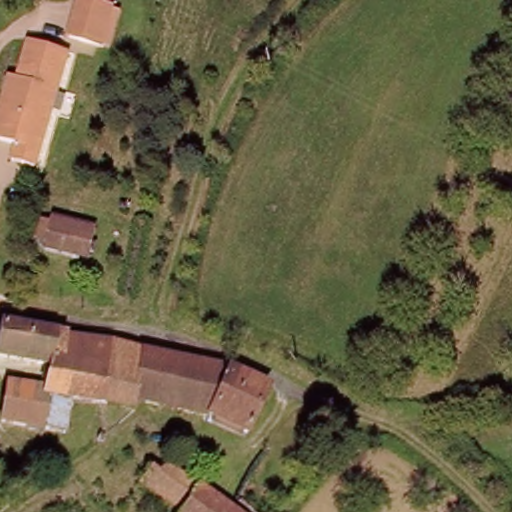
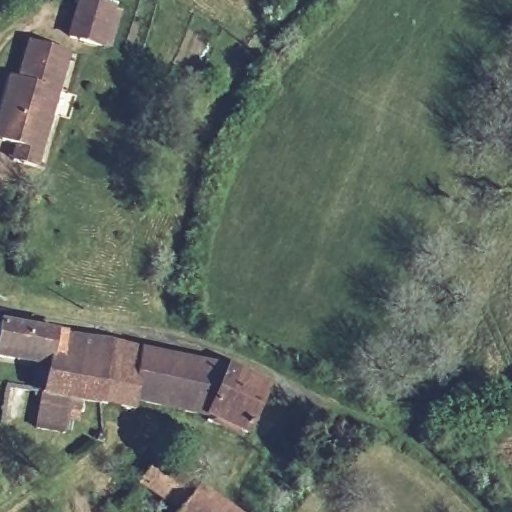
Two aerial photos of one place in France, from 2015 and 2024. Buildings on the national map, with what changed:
unchanged [(86,0),(109,9),(113,10),(99,48),(95,46),(69,36),(82,0),(86,0)]
unchanged [(13,145),(0,140),(0,110),(7,92),(12,76),(20,79),(34,42),(72,56),(30,169),(17,164),(7,160),(13,145)]
demolished [(92,229),(85,257),(42,247),(44,240),(46,232),(48,223),(49,219),(92,229)]
unchanged [(93,396),(80,435),(0,425),(0,389),(32,391),(42,365),(0,357),(0,328),(33,332),(109,347),(100,397),(93,396)]
unchanged [(109,347),(177,359),(229,369),(260,380),(255,395),(244,424),(224,418),(164,405),(125,395),(122,401),(100,397),(109,347)]
unchanged [(137,484),(149,468),(156,473),(167,463),(235,512),(170,512),(137,484)]

